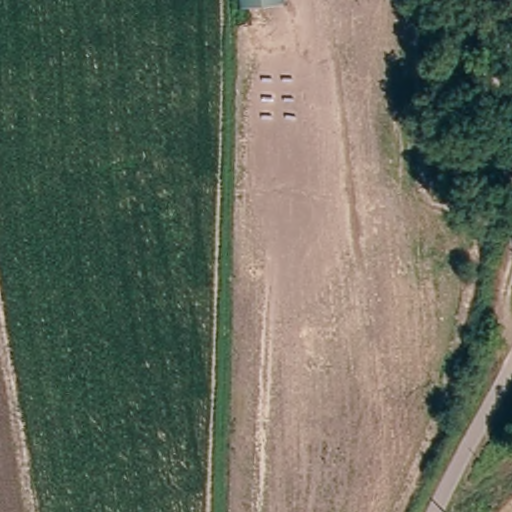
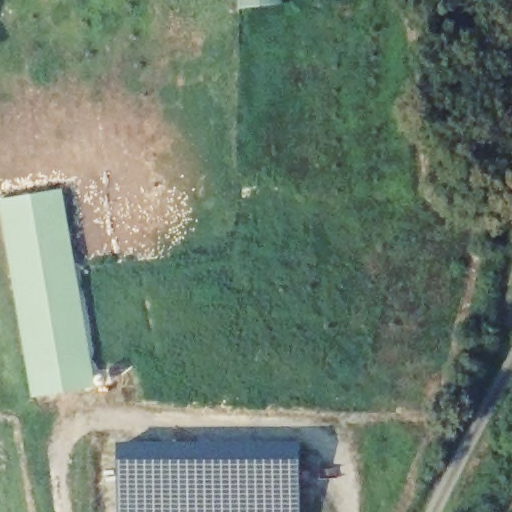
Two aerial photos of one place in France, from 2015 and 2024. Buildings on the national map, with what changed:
unchanged [(240,7),(240,0),(283,0),(283,1),(240,7)]
new [(95,374),(106,371),(109,384),(33,398),(1,199),(64,188),(95,374)]
new [(300,447),(300,512),(118,512),(118,449),(300,447)]

